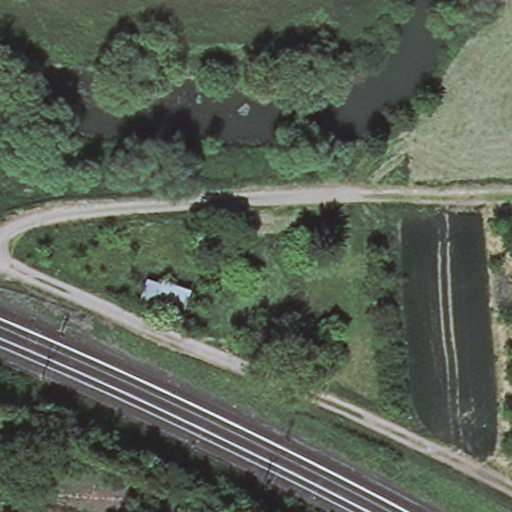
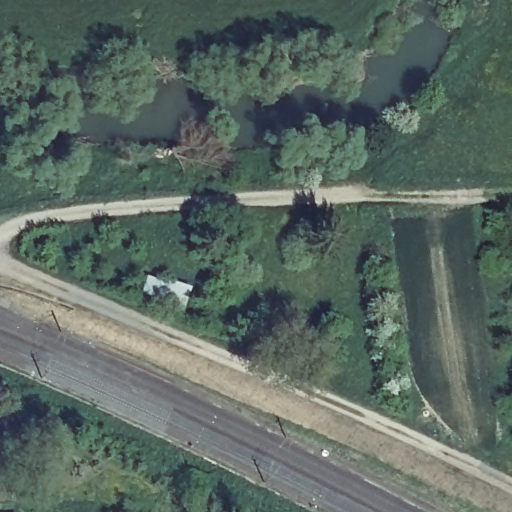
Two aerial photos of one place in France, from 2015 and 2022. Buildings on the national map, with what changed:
unchanged [(183,283),(176,308),(141,300),(147,274),(183,283)]

